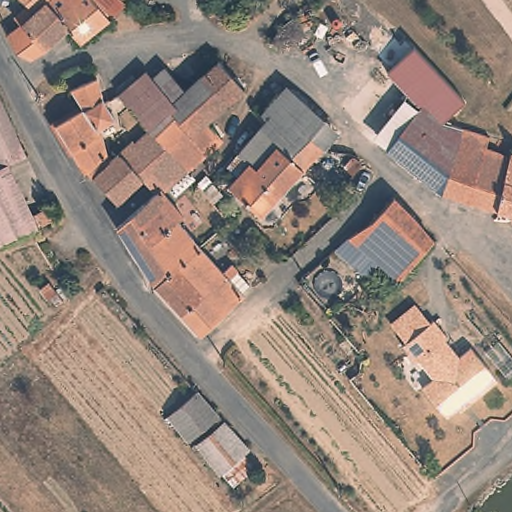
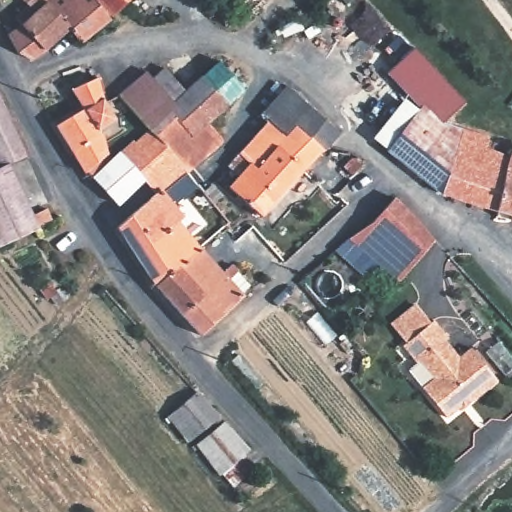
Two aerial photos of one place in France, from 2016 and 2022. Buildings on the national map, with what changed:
unchanged [(114,19),(86,40),(72,27),(31,58),(18,51),(10,35),(36,12),(22,0),(133,0),(131,2),(114,19)]
unchanged [(240,0),(247,19),(226,25),(218,2),(223,0),(240,0)]
unchanged [(202,76),(219,60),(243,90),(227,104),(207,121),(192,135),(173,112),(178,106),(175,102),(187,90),(194,84),(202,76)]
unchanged [(157,130),(124,92),(133,83),(144,75),(149,72),(156,80),(173,100),(175,102),(178,106),(173,112),(158,130),(157,130)]
unchanged [(83,109),(73,89),(101,76),(106,86),(108,96),(121,117),(105,127),(107,131),(112,149),(118,156),(94,175),(88,169),(85,170),(57,125),(83,109)]
unchanged [(263,115),(288,85),(337,132),(322,149),(296,125),(286,136),(268,120),(263,115)]
unchanged [(8,161),(0,164),(0,98),(26,154),(8,161)]
unchanged [(492,148),(512,156),(512,169),(502,213),(447,191),(393,145),(432,101),(450,121),(468,127),(495,137),(492,148)]
unchanged [(160,166),(150,151),(164,137),(158,130),(173,112),(192,135),(207,121),(222,138),(189,170),(163,192),(186,215),(180,222),(201,245),(155,283),(143,263),(119,225),(155,190),(145,180),(160,166)]
unchanged [(286,136),(296,125),(322,149),(283,192),(272,204),(259,216),(240,196),(230,188),(240,176),(230,167),(234,159),(239,154),(268,120),(286,136)]
unchanged [(134,160),(141,170),(145,177),(119,202),(94,175),(118,156),(126,151),(134,160)]
unchanged [(361,165),(352,175),(344,167),(353,158),(361,165)]
unchanged [(0,241),(0,164),(8,161),(37,225),(0,241)]
unchanged [(502,213),(512,169),(512,217),(502,213)]
unchanged [(359,254),(352,247),(358,238),(352,234),(370,219),(395,193),(415,210),(443,242),(402,276),(380,256),(368,271),(354,259),(359,254)]
unchanged [(201,245),(244,293),(201,334),(175,305),(155,283),(201,245)]
unchanged [(464,362),(475,353),(503,385),(476,408),(470,407),(452,420),(427,392),(440,382),(426,365),(423,368),(409,350),(412,347),(399,332),(422,313),(435,328),(438,325),(453,343),(450,345),(464,362)]
unchanged [(191,445),(170,419),(199,392),(220,415),(191,445)]
unchanged [(220,473),(195,446),(225,420),(251,450),(220,473)]

